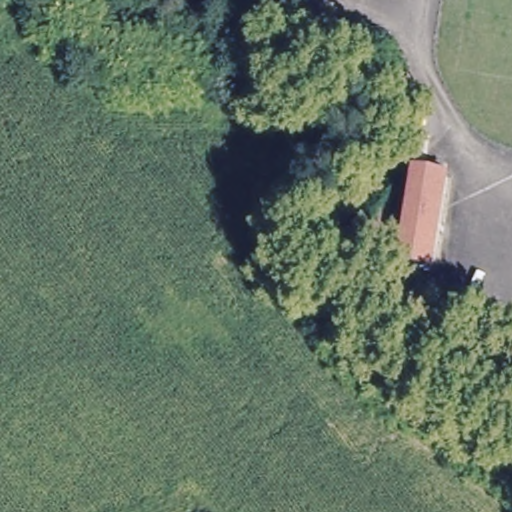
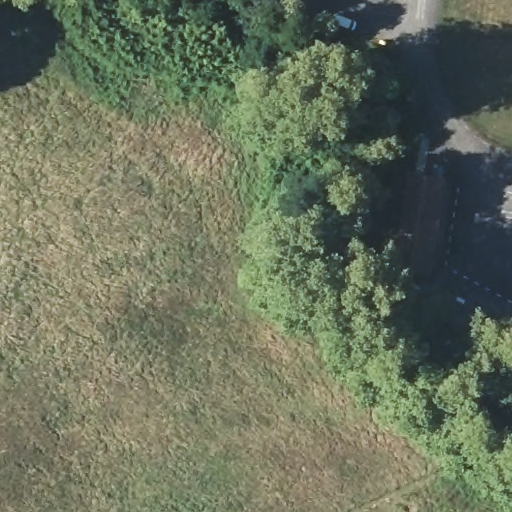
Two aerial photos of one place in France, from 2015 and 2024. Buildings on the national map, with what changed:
unchanged [(431,267),(398,262),(412,176),(444,181),(431,267)]

